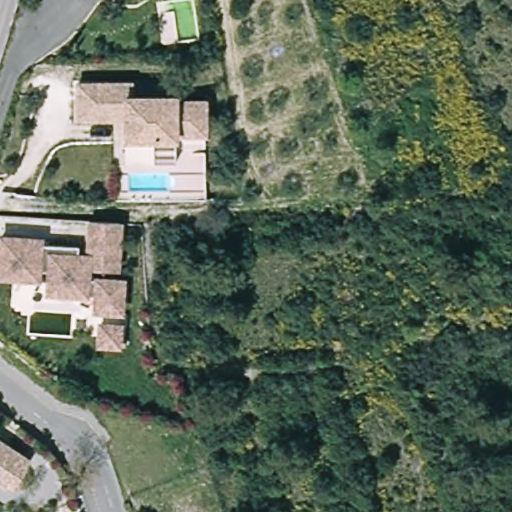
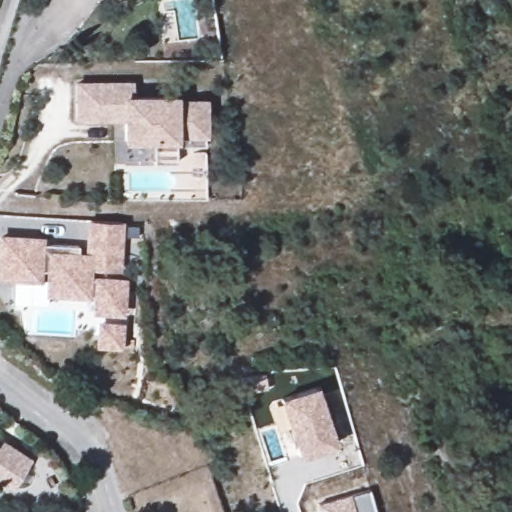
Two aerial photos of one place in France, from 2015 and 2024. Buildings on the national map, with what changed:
unchanged [(154,165),(154,144),(125,142),(126,121),(80,121),(80,86),(134,87),(134,99),(175,100),(176,104),(208,105),(206,138),(176,136),(176,144),(176,166),(154,165)]
unchanged [(124,224),(123,274),(93,272),(93,283),(128,283),(126,315),(100,314),(101,297),(52,295),(53,274),(43,274),(43,283),(5,281),(5,241),(45,243),(45,249),(54,250),(54,247),(83,249),(83,258),(93,259),(94,223),(124,224)]
unchanged [(104,347),(105,327),(126,328),(124,349),(104,347)]
new [(316,386),(336,445),(299,458),(279,399),(316,386)]
unchanged [(30,461),(13,489),(0,481),(0,440),(8,446),(30,461)]
new [(316,502),(349,493),(350,494),(369,488),(376,512),(320,512),(316,502)]

